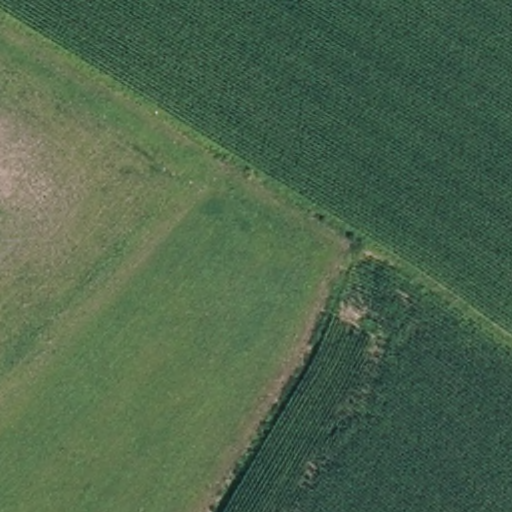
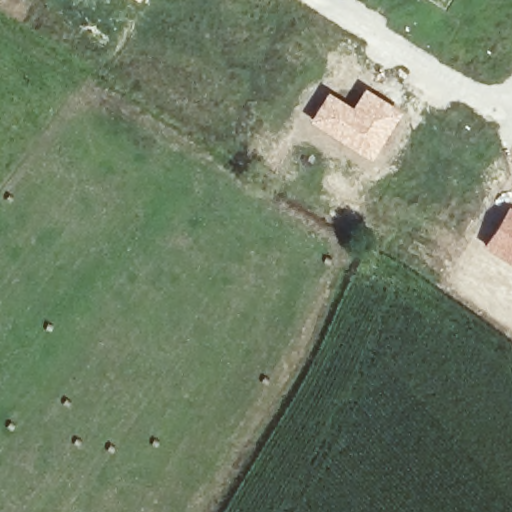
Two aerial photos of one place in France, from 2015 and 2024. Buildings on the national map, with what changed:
new [(325,91),(350,107),(363,88),(399,111),(368,160),(307,122),(325,91)]
new [(512,210),(512,267),(480,246),(505,206),(512,210)]

